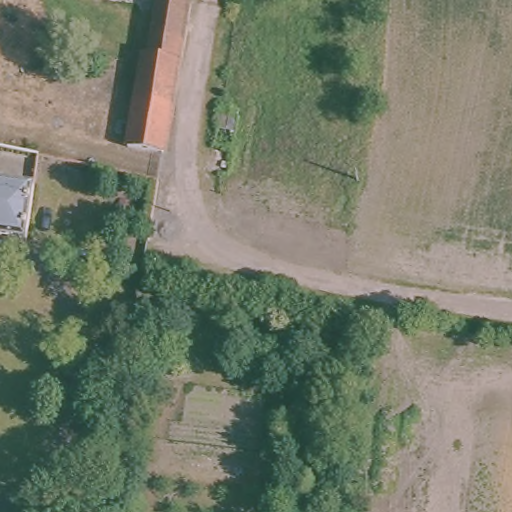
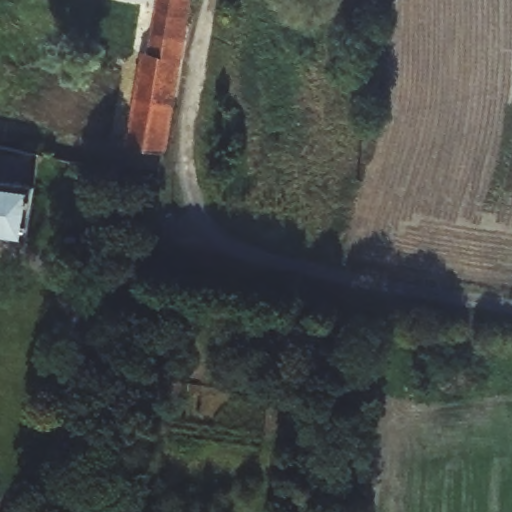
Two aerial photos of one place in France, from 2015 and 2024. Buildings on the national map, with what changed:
unchanged [(132,152),(147,55),(153,57),(163,0),(193,0),(166,158),(132,152)]
unchanged [(29,240),(0,237),(0,185),(35,190),(29,240)]

